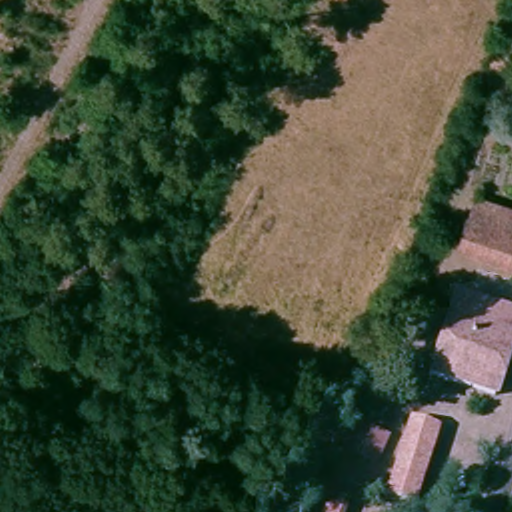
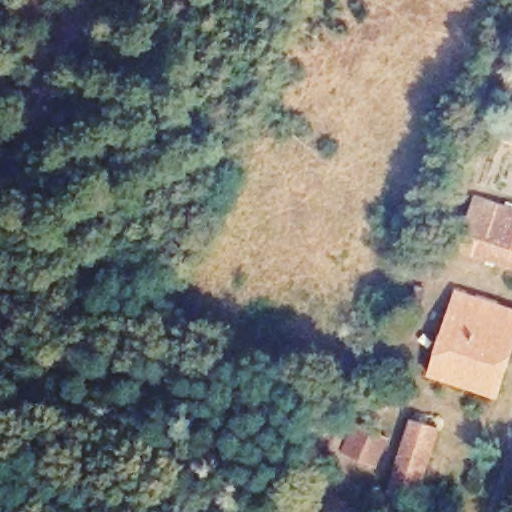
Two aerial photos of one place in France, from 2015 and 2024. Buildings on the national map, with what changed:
unchanged [(473,224),(486,199),(512,211),(512,263),(466,240),(473,224)]
unchanged [(512,377),(505,398),(428,373),(456,288),(512,306),(512,377)]
unchanged [(448,424),(425,502),(392,492),(416,414),(448,424)]
unchanged [(390,427),(372,469),(352,460),(369,418),(390,427)]

